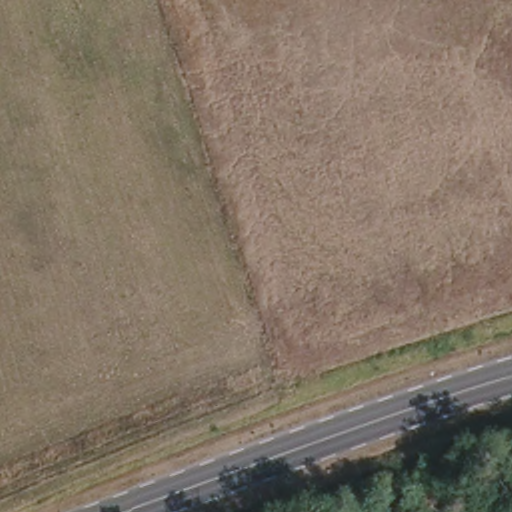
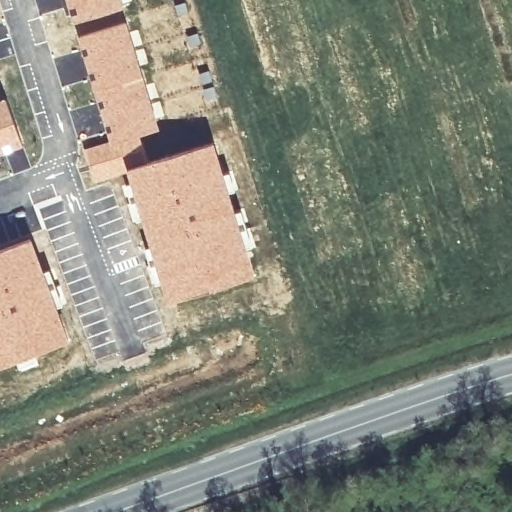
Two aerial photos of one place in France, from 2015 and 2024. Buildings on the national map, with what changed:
new [(124,6),(125,8),(72,25),(65,0),(131,0),(132,3),(124,6)]
new [(96,103),(77,36),(125,21),(129,31),(138,29),(148,63),(140,65),(160,130),(142,136),(149,161),(126,170),(127,173),(92,186),(84,169),(87,167),(82,149),(107,140),(97,111),(80,121),(89,138),(79,141),(69,111),(96,103)]
new [(5,98),(24,149),(0,157),(0,99),(5,98)]
new [(149,161),(214,142),(227,178),(230,177),(230,180),(233,179),(237,190),(231,192),(237,211),(242,209),(254,246),(249,248),(255,276),(168,304),(141,221),(132,223),(127,204),(135,201),(127,173),(126,170),(149,161)]
new [(31,238),(70,340),(33,355),(0,367),(0,249),(31,238)]

